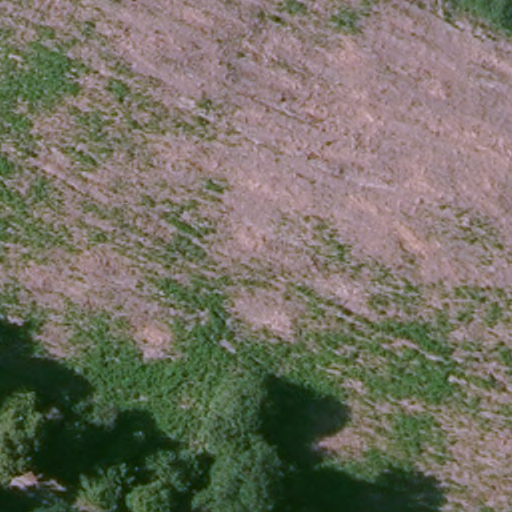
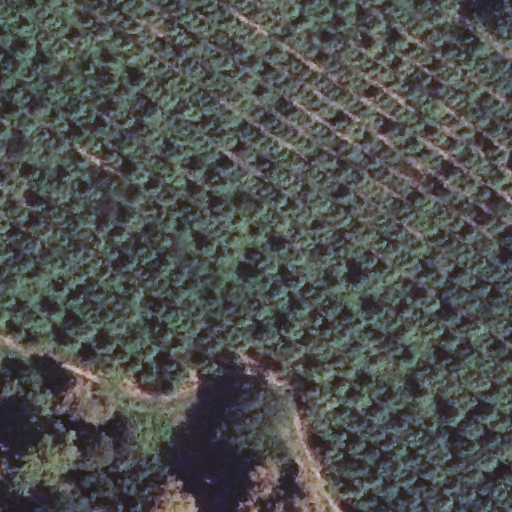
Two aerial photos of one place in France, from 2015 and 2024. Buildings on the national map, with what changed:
unchanged [(220,512),(178,512),(190,494),(220,512)]

